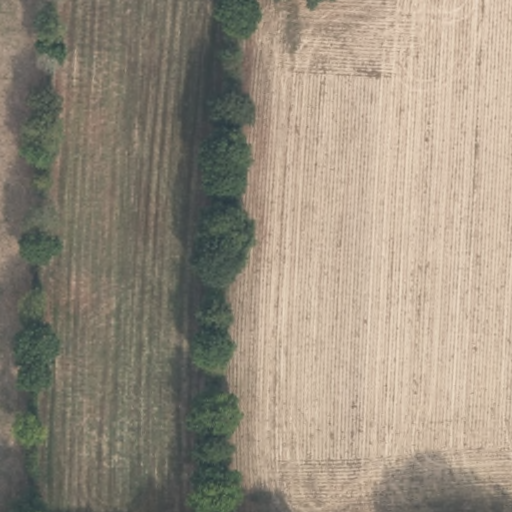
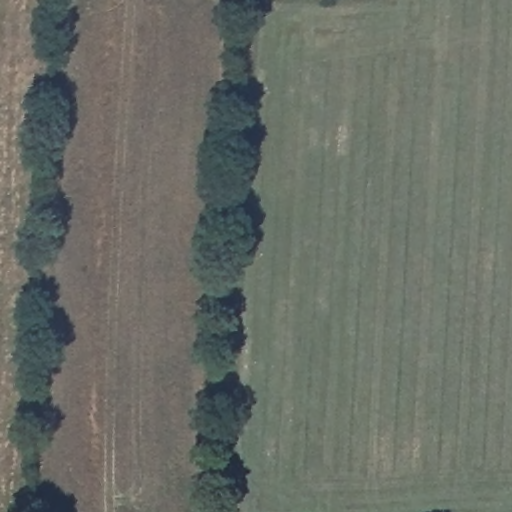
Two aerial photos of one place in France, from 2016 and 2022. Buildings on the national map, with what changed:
[]

